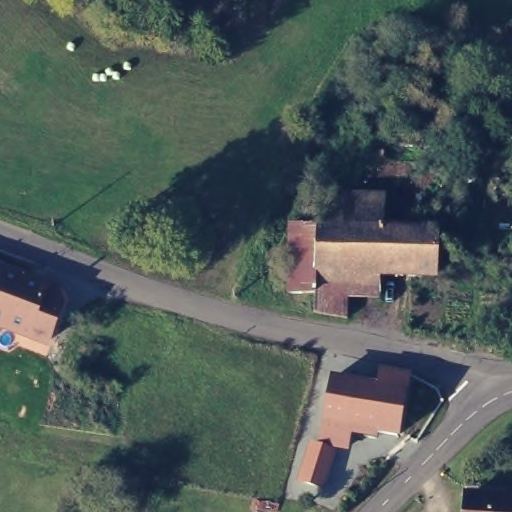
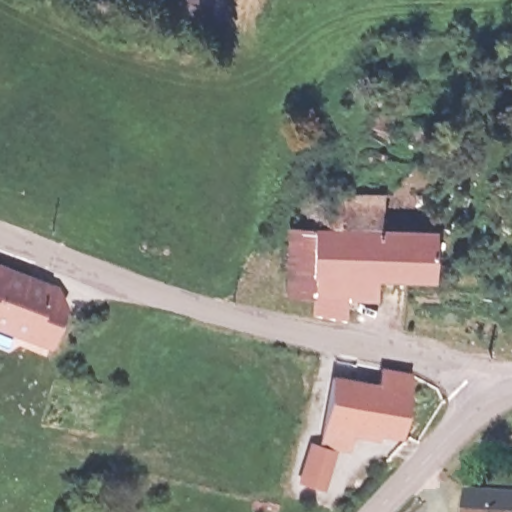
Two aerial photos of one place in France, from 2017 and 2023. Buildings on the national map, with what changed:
unchanged [(286,275),(272,276),(275,220),(308,221),(311,187),(380,189),(380,224),(437,220),(435,279),(385,277),(383,291),(281,284),(286,275)]
unchanged [(36,300),(55,307),(43,336),(25,329),(24,331),(0,322),(0,266),(44,283),(36,300)]
unchanged [(410,363),(398,425),(373,421),(372,428),(363,426),(365,419),(351,417),(346,438),(336,436),(322,480),(297,472),(311,430),(321,433),(333,367),(376,375),(380,358),(410,363)]
unchanged [(462,492),(512,495),(512,512),(461,512),(462,492)]

